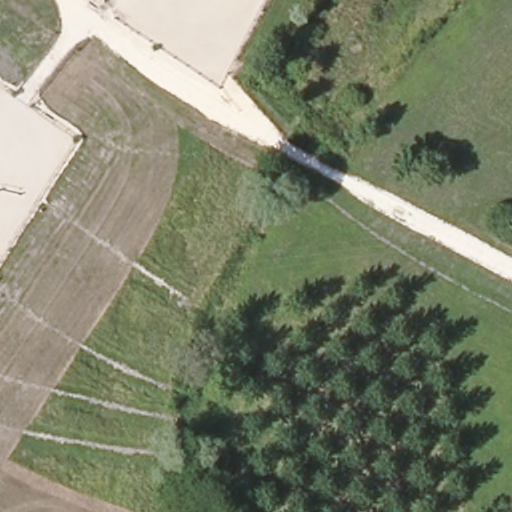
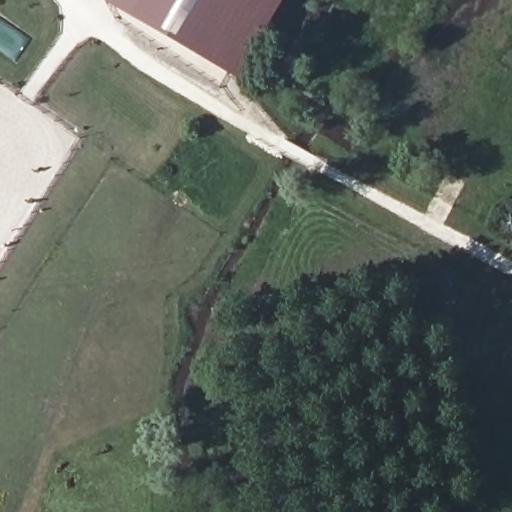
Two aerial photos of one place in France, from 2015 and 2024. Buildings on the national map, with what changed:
new [(104,0),(281,0),(235,77),(104,0)]

